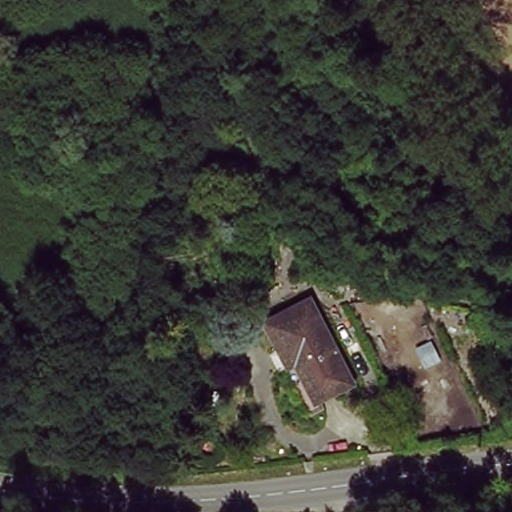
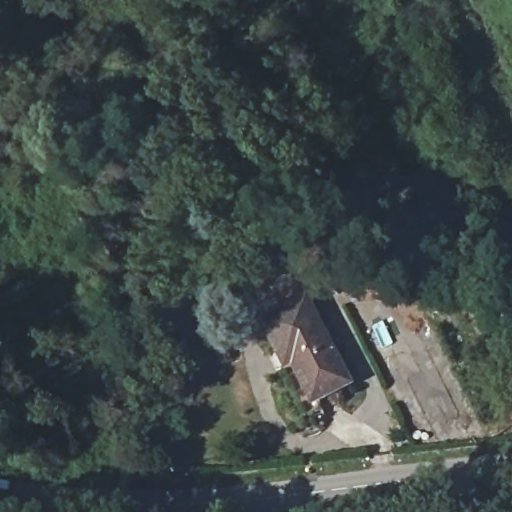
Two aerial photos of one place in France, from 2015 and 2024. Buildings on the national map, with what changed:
unchanged [(360,383),(313,406),(271,320),(316,300),(360,383)]

